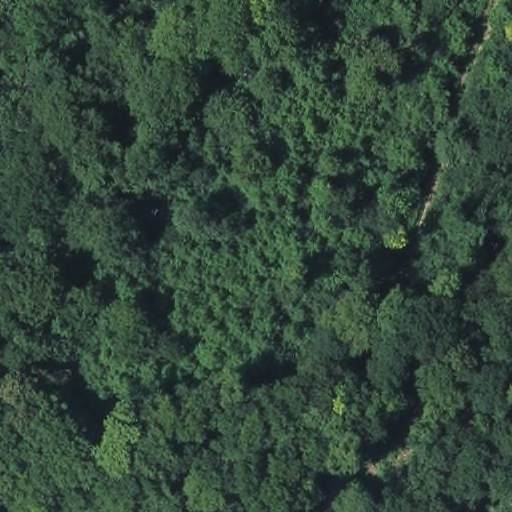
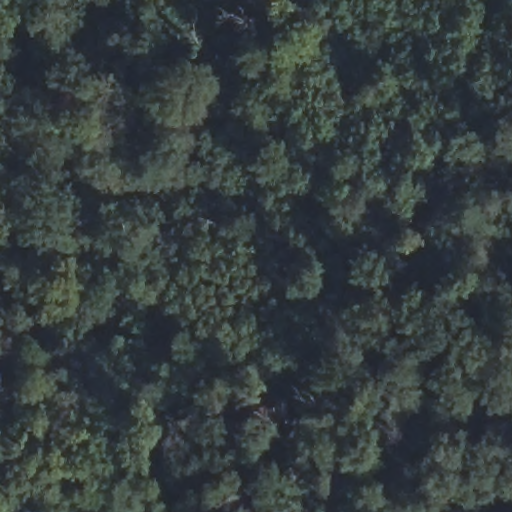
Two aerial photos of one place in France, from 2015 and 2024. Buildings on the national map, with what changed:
[]

